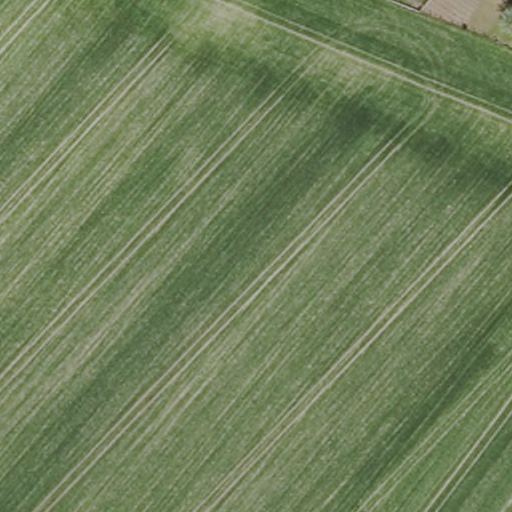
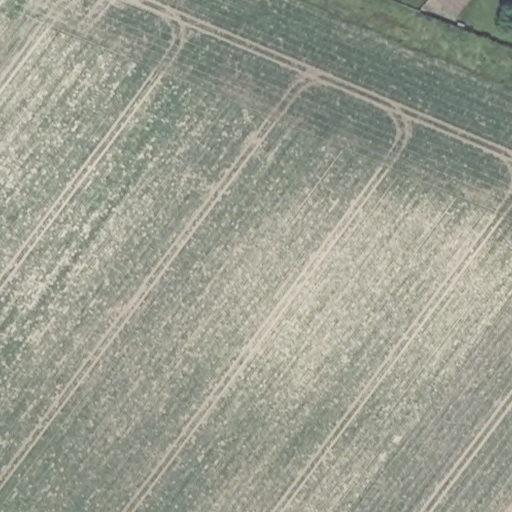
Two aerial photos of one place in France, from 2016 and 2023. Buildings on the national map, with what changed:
[]

